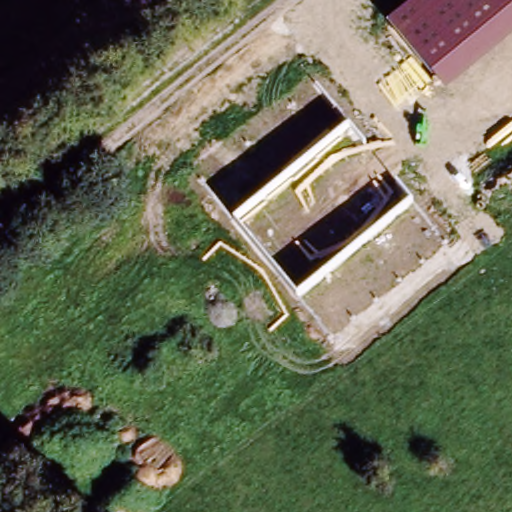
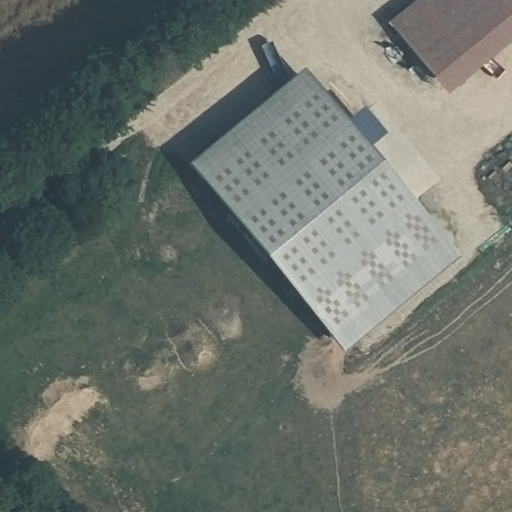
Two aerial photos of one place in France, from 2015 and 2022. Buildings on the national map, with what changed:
unchanged [(416,59),(387,25),(416,0),(512,0),(512,42),(446,96),(416,59)]
new [(347,122),(363,108),(384,136),(369,147),(459,258),(342,353),(190,165),(304,71),(347,122)]
demolished [(329,182),(394,138),(414,166),(348,210),(329,182)]

